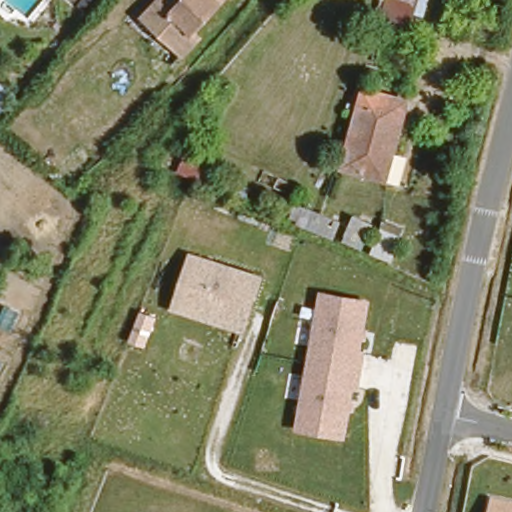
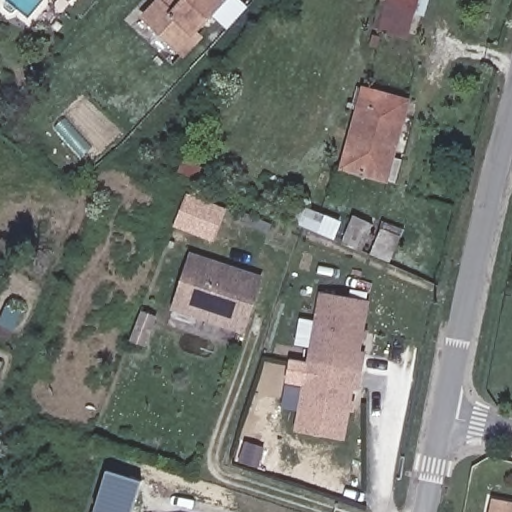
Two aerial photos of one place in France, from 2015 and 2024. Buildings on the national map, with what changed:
unchanged [(205,34),(192,56),(145,26),(162,0),(217,0),(199,29),(205,34)]
unchanged [(381,16),(386,0),(417,0),(410,24),(381,16)]
unchanged [(388,180),(342,168),(364,93),(409,104),(388,180)]
new [(172,226),(185,192),(228,209),(214,243),(172,226)]
unchanged [(386,240),(388,237),(408,245),(398,270),(346,249),(355,228),(386,240)]
unchanged [(191,252),(265,276),(246,333),(171,310),(191,252)]
unchanged [(321,292),(371,301),(366,331),(371,332),(369,343),(364,342),(363,351),(368,352),(361,391),(354,390),(353,400),(358,401),(356,413),(351,412),(345,441),(293,431),(321,292)]
new [(106,470),(141,482),(132,512),(93,512),(106,470)]
unchanged [(512,501),(512,512),(491,512),(494,498),(512,501)]

